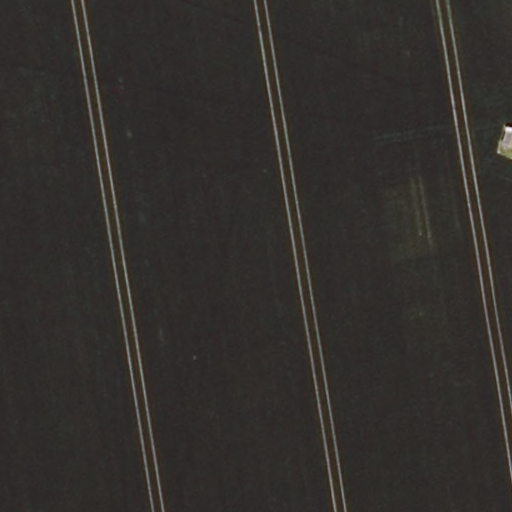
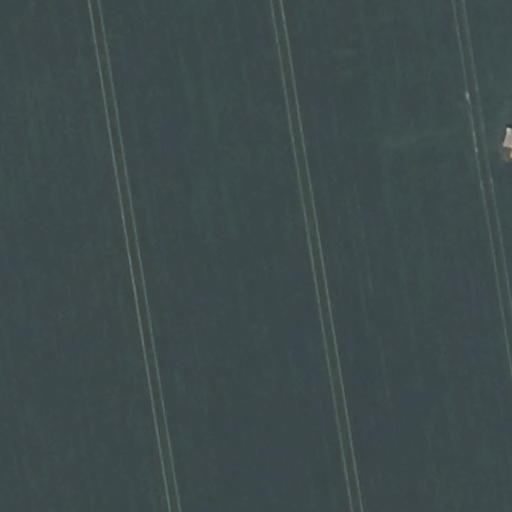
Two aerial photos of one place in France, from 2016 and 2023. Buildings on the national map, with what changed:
unchanged [(512,131),(512,149),(504,147),(507,130),(512,131)]

